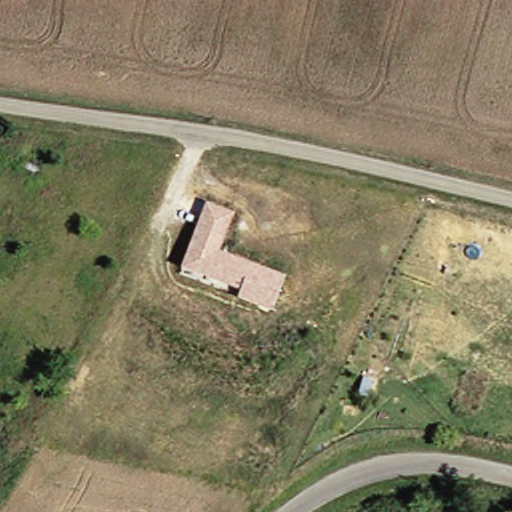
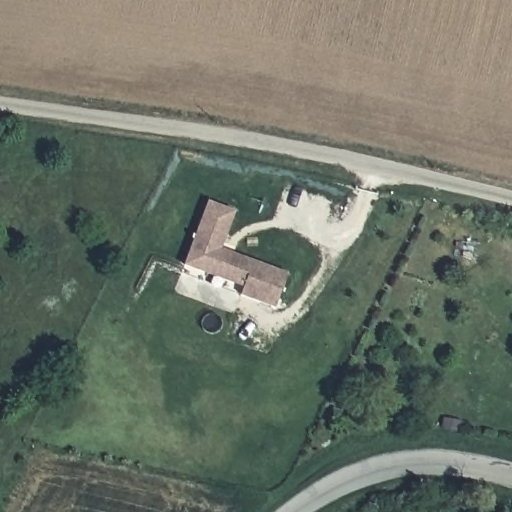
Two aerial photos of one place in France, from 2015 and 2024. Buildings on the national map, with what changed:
unchanged [(240,300),(244,289),(181,266),(207,200),(235,212),(222,249),(286,275),(273,311),(240,300)]

